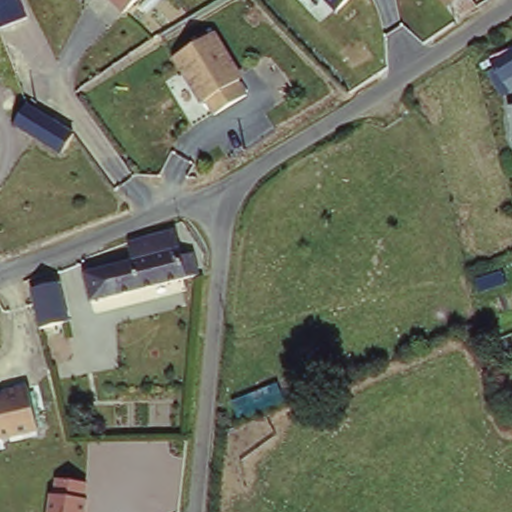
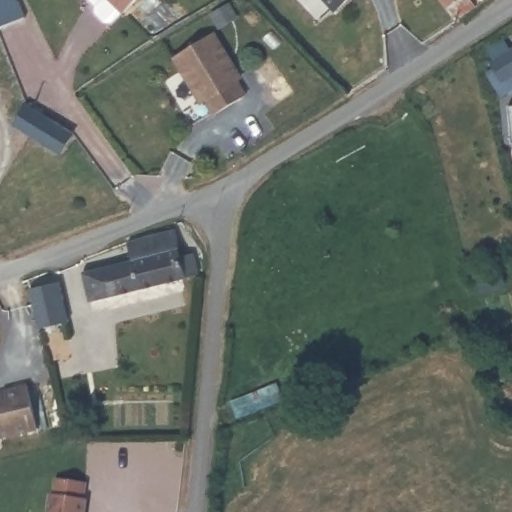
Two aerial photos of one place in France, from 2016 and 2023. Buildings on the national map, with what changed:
unchanged [(17,0),(24,18),(0,27),(0,0),(17,0)]
unchanged [(116,0),(139,0),(129,12),(116,0)]
unchanged [(323,0),(346,0),(334,12),(323,0)]
unchanged [(468,0),(479,16),(462,26),(441,0),(468,0)]
unchanged [(254,84),(213,114),(176,58),(220,32),(254,84)]
unchanged [(495,61),(512,51),(512,78),(508,80),(495,61)]
unchanged [(57,147),(10,119),(20,103),(68,131),(57,147)]
unchanged [(133,266),(130,248),(178,234),(185,259),(193,258),(196,275),(83,307),(77,281),(133,266)]
unchanged [(63,285),(69,326),(41,332),(36,288),(63,285)]
unchanged [(39,431),(0,441),(0,393),(29,385),(39,431)]
unchanged [(91,512),(50,512),(54,493),(56,475),(94,481),(93,500),(91,512)]

